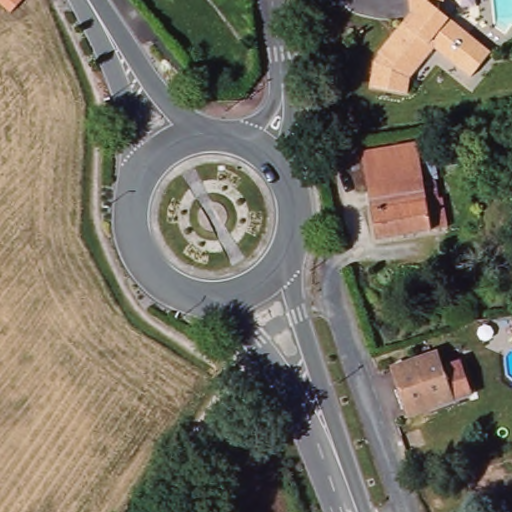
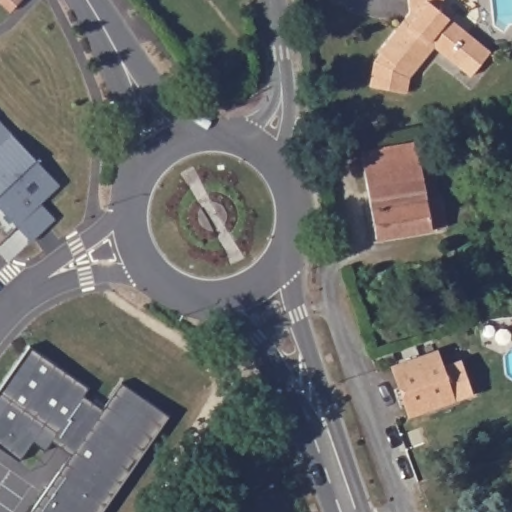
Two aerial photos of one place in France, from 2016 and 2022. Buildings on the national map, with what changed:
unchanged [(0,3),(0,0),(22,0),(11,12),(0,3)]
unchanged [(489,46),(490,59),(476,76),(439,47),(415,77),(413,93),(376,87),(379,62),(386,54),(384,52),(409,21),(416,12),(415,0),(448,0),(450,15),(489,46)]
new [(0,194),(0,122),(36,160),(0,194)]
unchanged [(362,152),(432,140),(438,174),(435,179),(439,197),(442,197),(447,226),(377,238),(362,152)]
new [(60,185),(40,203),(56,220),(31,242),(0,210),(0,194),(36,160),(60,185)]
new [(90,388),(84,396),(103,409),(121,382),(170,416),(102,512),(31,512),(71,455),(52,442),(45,452),(33,443),(20,462),(0,448),(0,389),(30,346),(90,388)]
unchanged [(393,367),(437,352),(442,367),(459,361),(470,394),(409,415),(393,367)]

